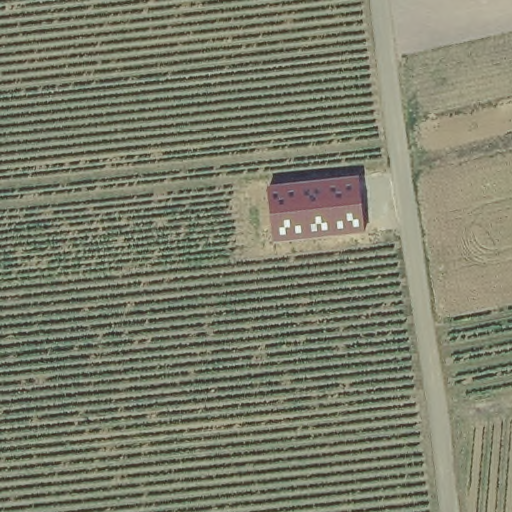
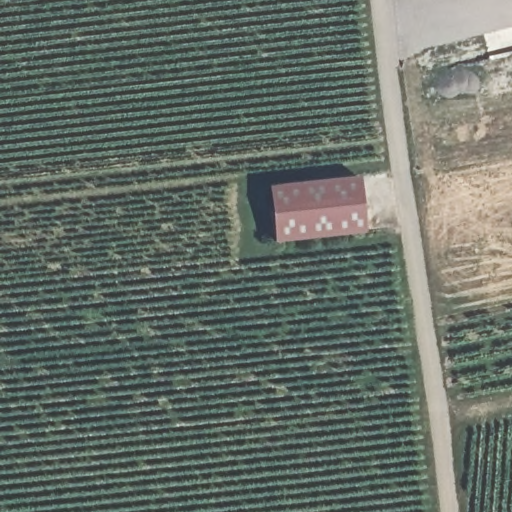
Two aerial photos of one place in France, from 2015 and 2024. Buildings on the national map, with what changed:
unchanged [(365,233),(274,243),(268,188),(358,177),(365,233)]

